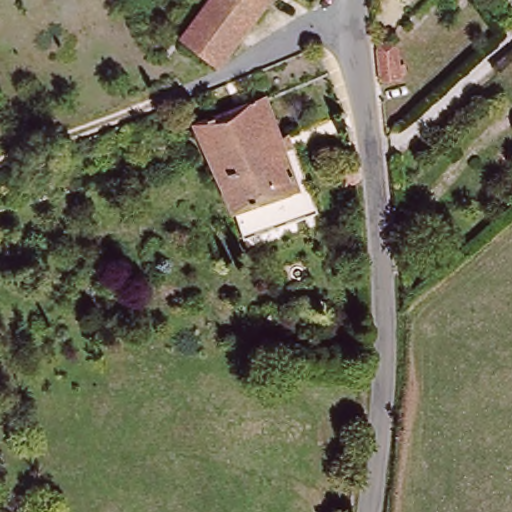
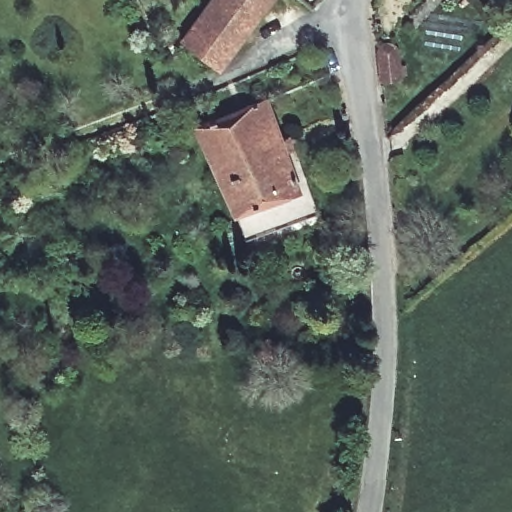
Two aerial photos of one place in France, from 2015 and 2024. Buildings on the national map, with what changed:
unchanged [(180,33),(206,0),(265,0),(217,62),(180,33)]
unchanged [(310,2),(307,0),(312,0),(310,2)]
unchanged [(420,18),(416,14),(431,0),(432,0),(435,4),(420,18)]
unchanged [(295,133),(313,187),(239,215),(200,124),(269,96),(283,138),(295,133)]
unchanged [(345,172),(358,167),(359,181),(348,185),(346,174),(345,172)]
unchanged [(313,187),(321,213),(248,241),(239,215),(313,187)]
unchanged [(276,356),(271,358),(268,358),(263,355),(261,350),(261,347),(264,342),(268,340),(273,340),(277,343),(279,347),(279,351),(276,356)]

